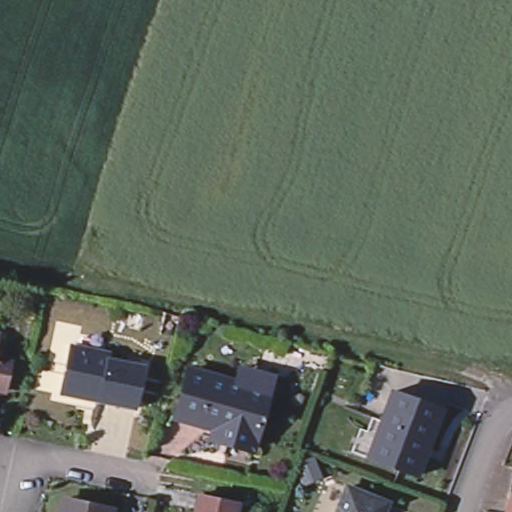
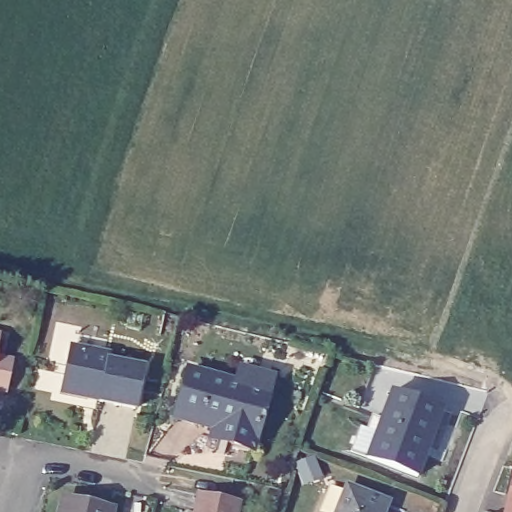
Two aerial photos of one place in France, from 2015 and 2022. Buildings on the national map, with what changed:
unchanged [(60,391),(70,344),(109,352),(108,357),(142,365),(133,407),(99,399),(85,396),(60,391)]
unchanged [(4,389),(0,389),(0,356),(10,358),(4,389)]
unchanged [(214,425),(172,414),(186,369),(232,382),(237,367),(270,376),(266,391),(250,448),(225,440),(211,437),(214,425)]
unchanged [(440,407),(415,474),(366,455),(390,390),(440,407)]
unchanged [(512,512),(505,512),(512,480),(512,512)]
unchanged [(385,501),(381,512),(335,512),(345,486),(385,501)]
unchanged [(237,501),(235,512),(192,512),(196,493),(237,501)]
unchanged [(112,507),(110,512),(59,512),(62,496),(112,507)]

